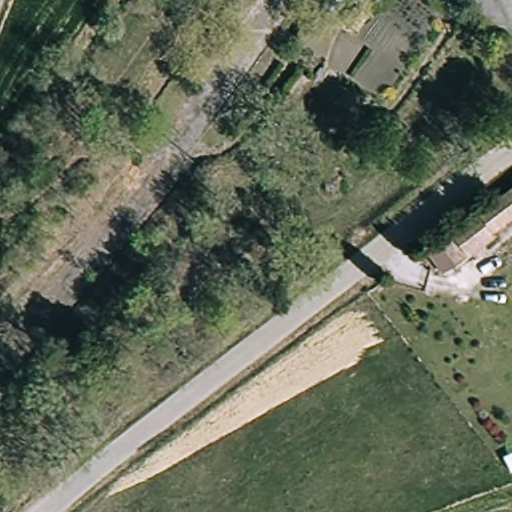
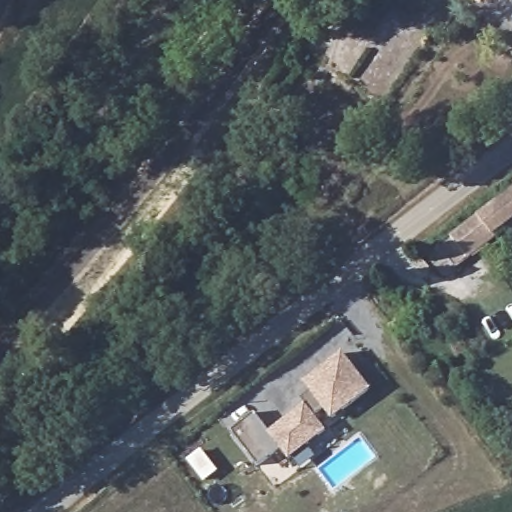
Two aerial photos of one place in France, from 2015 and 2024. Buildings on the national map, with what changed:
unchanged [(469,255),(449,228),(512,182),(512,224),(469,255)]
new [(315,416),(326,430),(289,460),(280,448),(258,465),(231,431),(255,412),(270,432),(305,404),(299,395),(308,388),(304,382),(343,352),(373,390),(332,420),(324,410),(315,416)]

